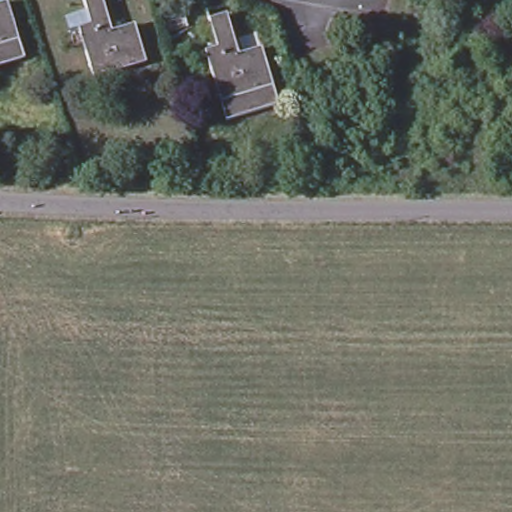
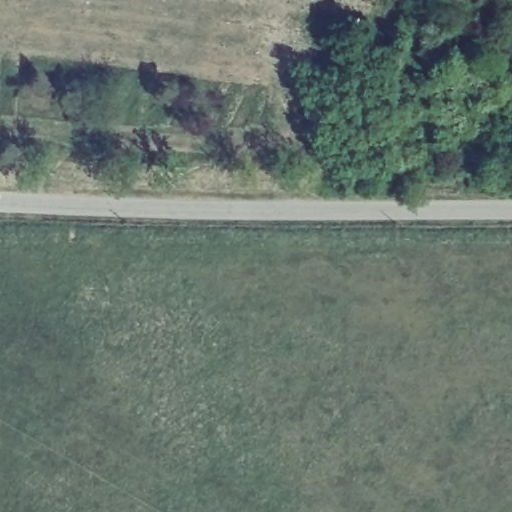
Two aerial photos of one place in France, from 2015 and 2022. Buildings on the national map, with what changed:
demolished [(86,12),(81,0),(100,0),(107,22),(128,14),(147,66),(96,84),(72,17),(86,12)]
demolished [(22,60),(0,67),(0,3),(2,3),(22,60)]
demolished [(219,55),(209,25),(227,19),(241,59),(262,52),(281,104),(229,122),(207,59),(219,55)]

